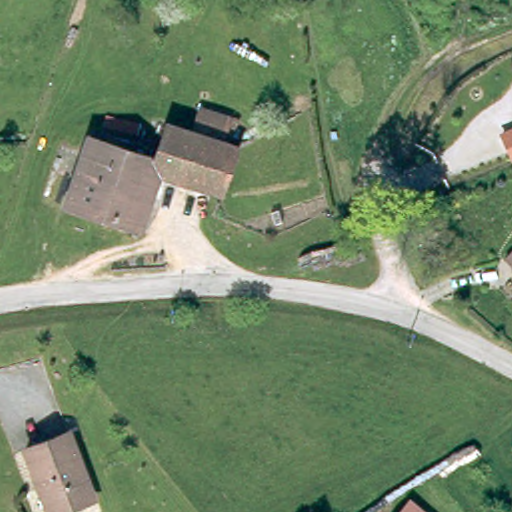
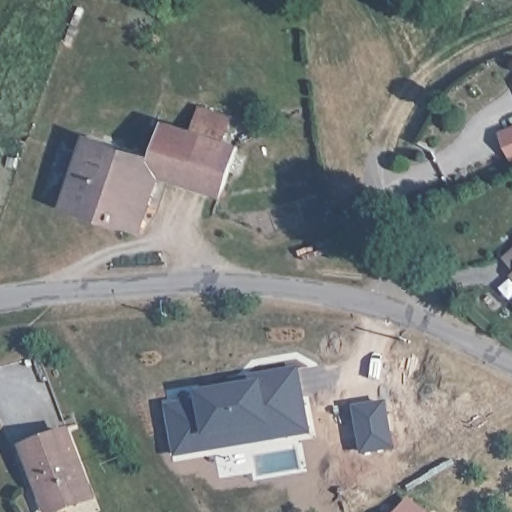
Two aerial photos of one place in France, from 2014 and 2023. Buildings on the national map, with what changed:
unchanged [(213,183),(149,160),(153,150),(168,115),(229,137),(213,183)]
unchanged [(56,192),(87,125),(100,130),(153,150),(149,160),(125,219),(56,192)]
unchanged [(497,130),(512,125),(512,159),(511,159),(497,130)]
unchanged [(512,246),(512,262),(504,253),(512,246)]
new [(211,439),(212,451),(175,456),(167,405),(199,401),(197,390),(262,380),(260,373),(300,366),(312,433),(276,440),(272,429),(211,439)]
new [(394,448),(360,453),(352,405),(386,400),(394,448)]
unchanged [(39,481),(25,445),(70,428),(95,495),(55,509),(50,511),(39,481)]
new [(426,512),(398,512),(410,498),(426,512)]

